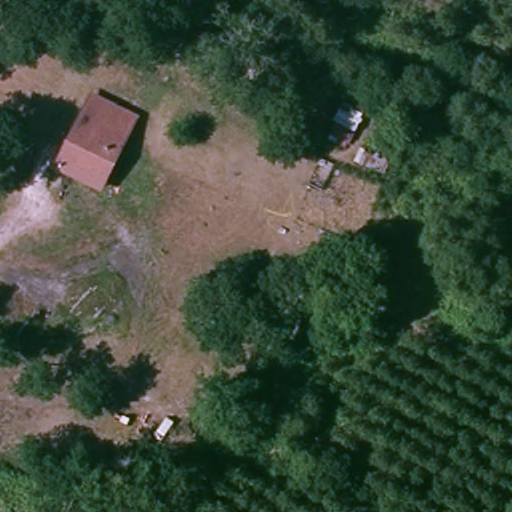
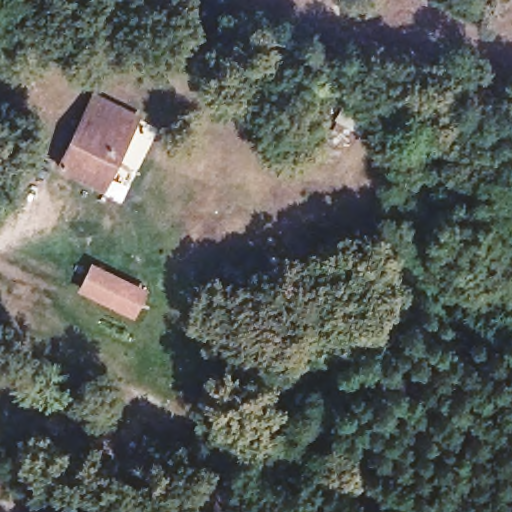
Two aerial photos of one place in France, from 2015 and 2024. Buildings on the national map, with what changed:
unchanged [(138,117),(104,186),(60,167),(94,97),(138,117)]
demolished [(511,262),(512,260),(512,263),(511,262)]
new [(133,318),(78,291),(91,263),(146,290),(133,318)]

